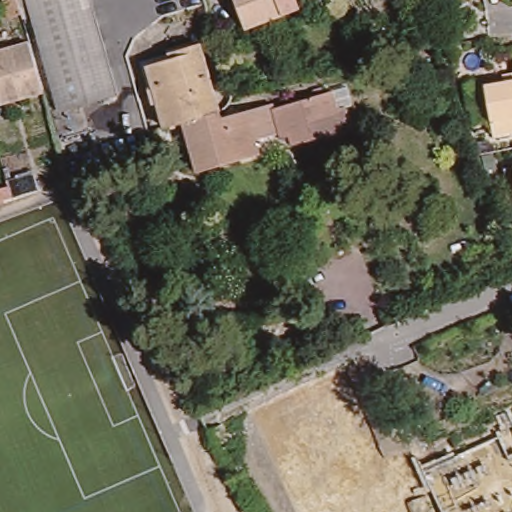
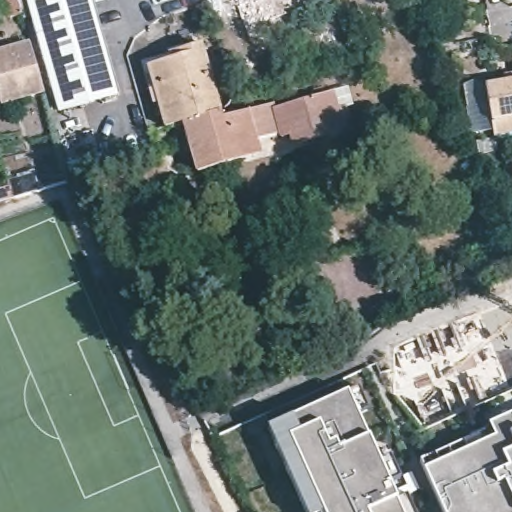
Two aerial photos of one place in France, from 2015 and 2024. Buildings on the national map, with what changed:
unchanged [(70,109),(58,113),(31,15),(20,18),(16,0),(101,0),(127,94),(70,109)]
unchanged [(241,0),(301,0),(304,8),(288,14),(251,28),(241,1),(241,0)]
unchanged [(0,90),(0,49),(29,41),(43,91),(3,100),(0,90)]
unchanged [(183,126),(166,131),(154,90),(149,71),(173,63),(171,57),(198,49),(200,51),(219,116),(183,126)]
unchanged [(508,82),(507,75),(512,74),(512,120),(497,123),(490,86),(508,82)]
unchanged [(452,101),(445,83),(451,80),(458,99),(452,101)]
unchanged [(290,136),(281,139),(280,137),(273,110),(295,105),(313,99),(312,92),(320,90),(322,97),(331,94),(337,111),(342,110),(349,131),(311,142),(292,148),(290,136)]
unchanged [(190,151),(183,126),(219,116),(221,123),(240,117),(272,109),(273,110),(280,137),(255,144),(260,158),(197,176),(190,151)]
unchanged [(512,169),(512,199),(506,171),(512,169)]
unchanged [(38,181),(41,180),(44,190),(13,199),(7,180),(35,172),(38,181)]
demolished [(311,387),(322,376),(372,353),(380,373),(366,385),(373,394),(341,420),(311,387)]
new [(268,428),(347,392),(401,512),(307,512),(268,428)]
demolished [(220,450),(207,429),(223,422),(233,443),(220,450)]
new [(512,512),(442,512),(421,463),(512,422),(512,512)]
demolished [(364,486),(420,444),(450,483),(430,500),(412,512),(383,512),(364,486)]

